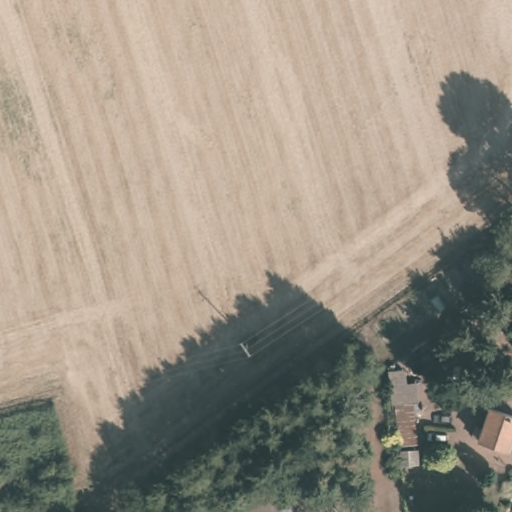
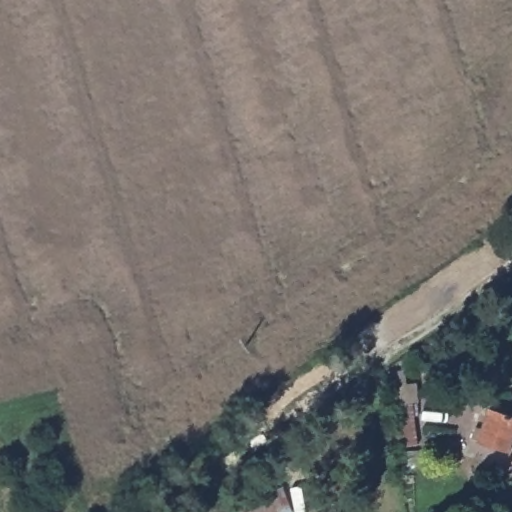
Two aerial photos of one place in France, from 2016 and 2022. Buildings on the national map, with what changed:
unchanged [(498,255),(512,245),(512,272),(511,272),(498,255)]
unchanged [(394,450),(387,377),(404,377),(405,386),(417,387),(420,407),(412,407),(415,447),(394,450)]
unchanged [(476,447),(485,416),(512,424),(512,445),(509,456),(476,447)]
unchanged [(284,495),(291,512),(237,512),(236,511),(284,495)]

